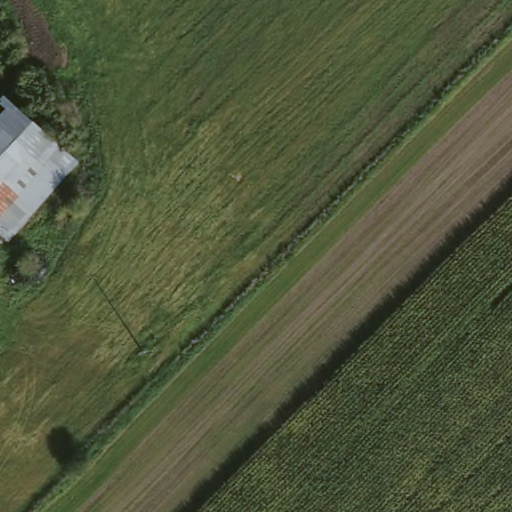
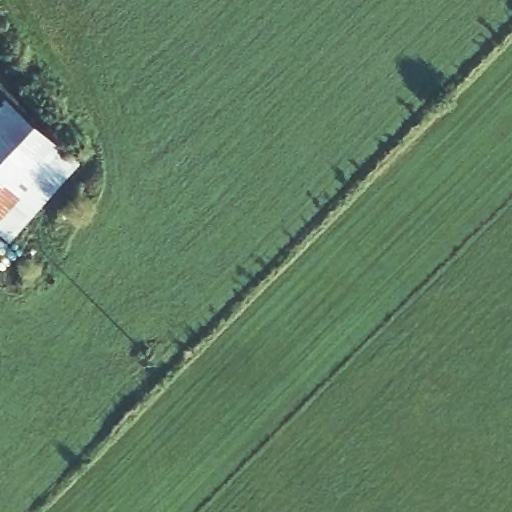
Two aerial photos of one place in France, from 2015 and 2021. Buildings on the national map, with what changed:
unchanged [(75,144),(57,164),(71,175),(16,239),(0,225),(0,104),(11,91),(75,144)]

